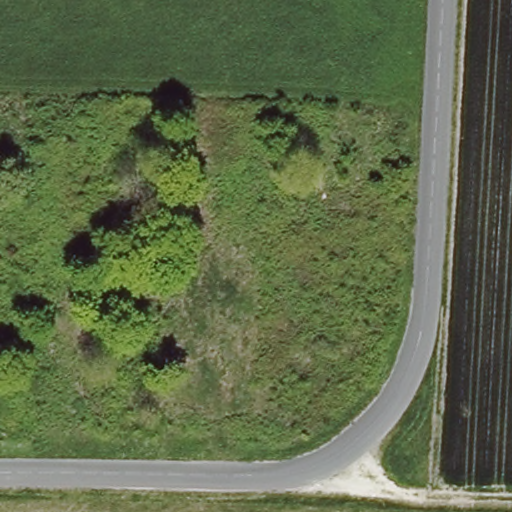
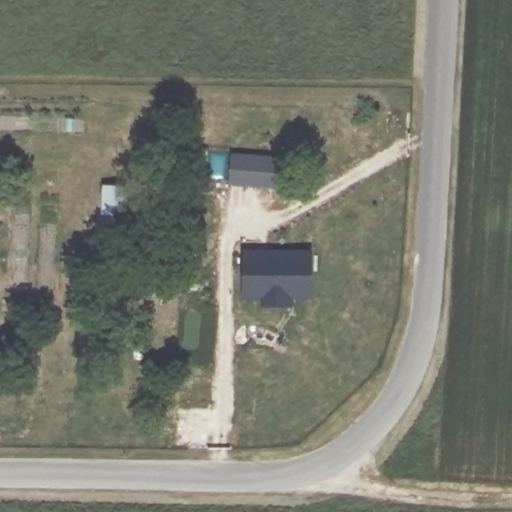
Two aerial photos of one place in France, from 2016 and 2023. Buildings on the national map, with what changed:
new [(230,154),(278,157),(276,189),(228,186),(230,154)]
new [(311,251),(312,299),(292,297),(292,307),(259,307),(258,300),(241,300),(240,250),(311,251)]

